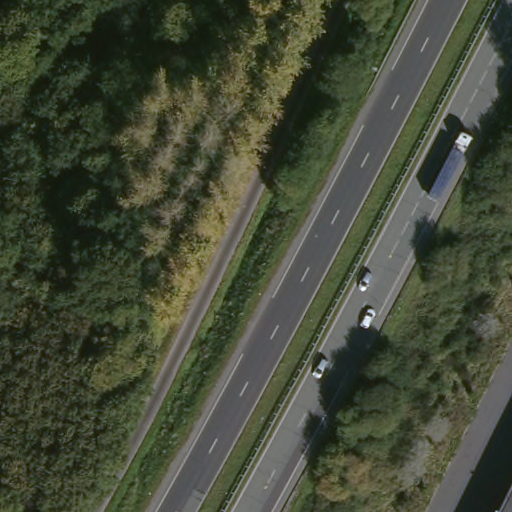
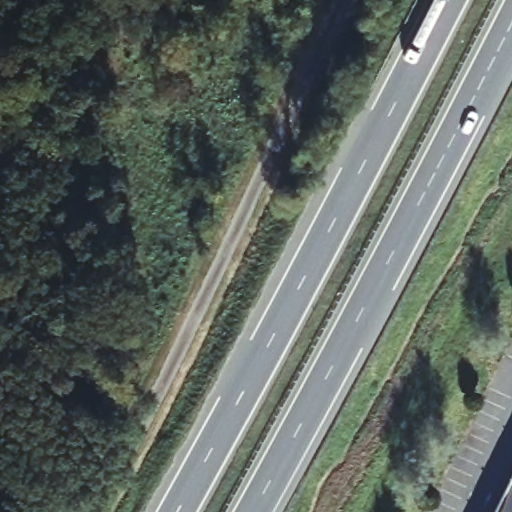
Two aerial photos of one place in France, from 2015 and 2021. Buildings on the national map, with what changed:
unchanged [(497,512),(512,482),(512,512),(497,512)]

